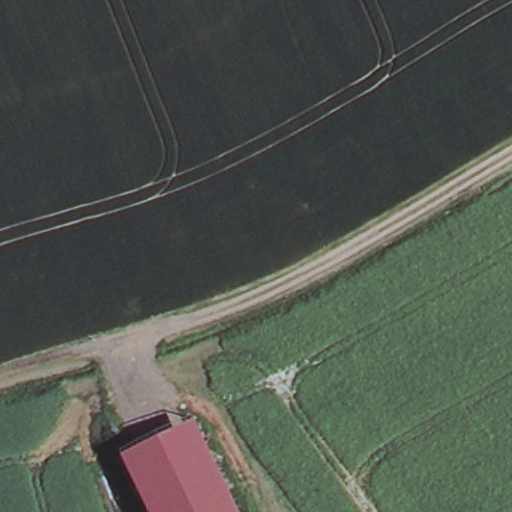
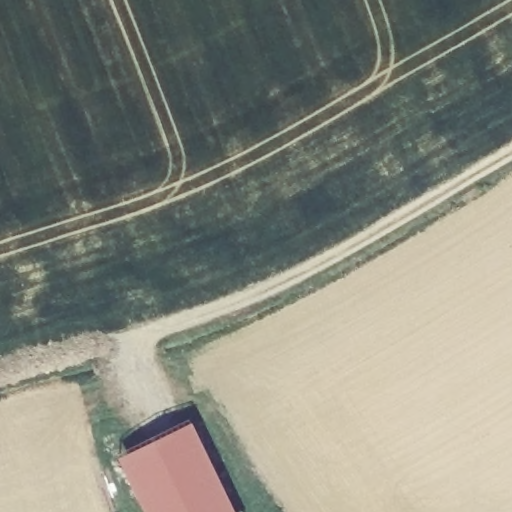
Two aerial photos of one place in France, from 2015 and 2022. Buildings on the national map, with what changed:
unchanged [(194,418),(243,512),(150,512),(120,455),(194,418)]

